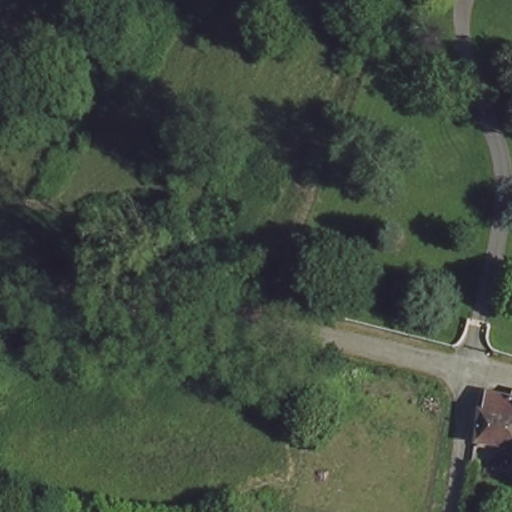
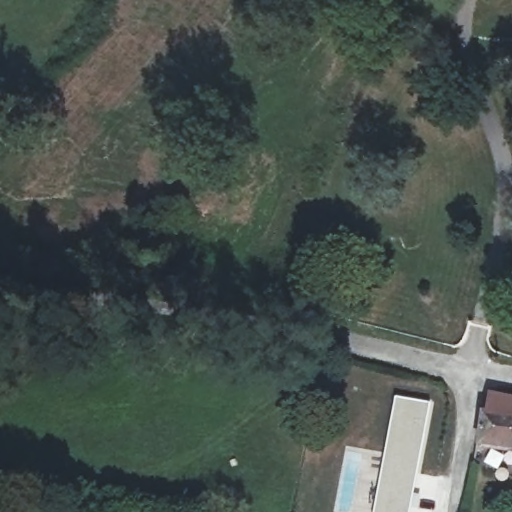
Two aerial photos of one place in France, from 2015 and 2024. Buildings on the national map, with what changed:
unchanged [(493,395),(509,399),(510,391),(512,392),(512,449),(478,443),(483,412),(490,413),(493,395)]
new [(394,395),(432,402),(411,512),(370,512),(394,395)]

